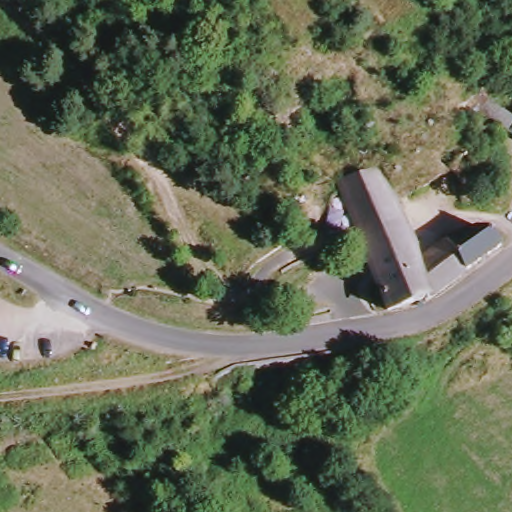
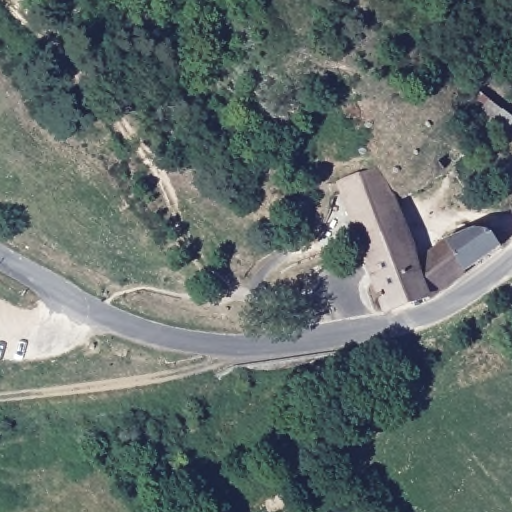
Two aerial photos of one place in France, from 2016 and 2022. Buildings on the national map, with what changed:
unchanged [(512,119),(512,128),(506,137),(465,106),(475,92),(512,119)]
unchanged [(370,167),(380,162),(394,197),(417,259),(432,296),(394,308),(380,279),(373,262),(342,191),(339,183),(370,167)]
unchanged [(487,225),(494,229),(497,232),(505,246),(472,268),(460,239),(487,225)]

